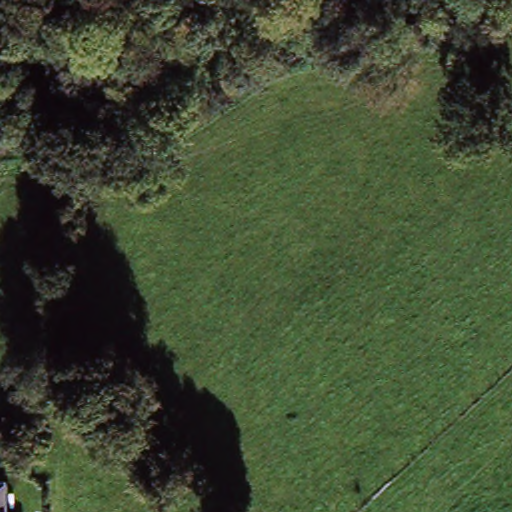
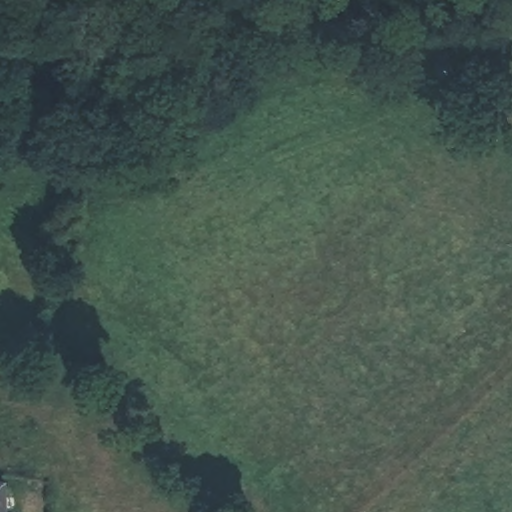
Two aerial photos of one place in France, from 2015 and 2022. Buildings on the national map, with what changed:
unchanged [(3,485),(4,512),(0,512),(0,485),(3,485)]

